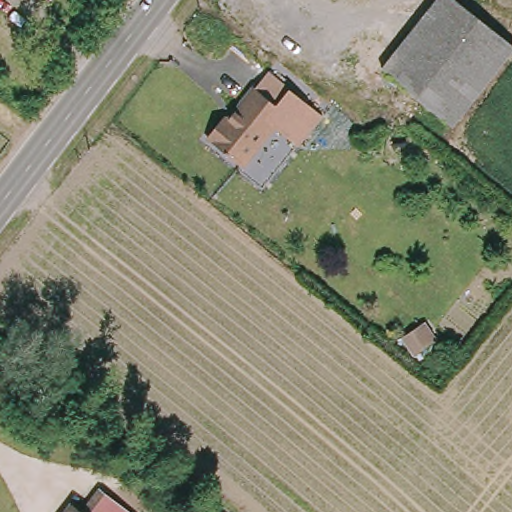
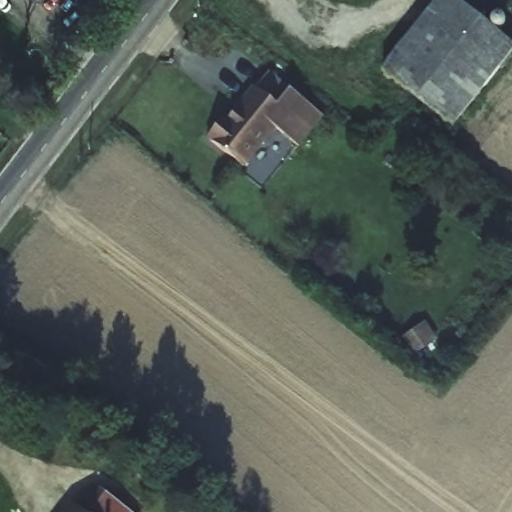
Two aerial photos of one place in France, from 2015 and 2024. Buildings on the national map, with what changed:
unchanged [(434,0),(455,0),(512,49),(455,129),(383,67),(434,0)]
unchanged [(247,165),(209,136),(226,114),(233,120),(259,85),(290,112),(247,165)]
unchanged [(121,512),(98,512),(108,500),(121,512)]

